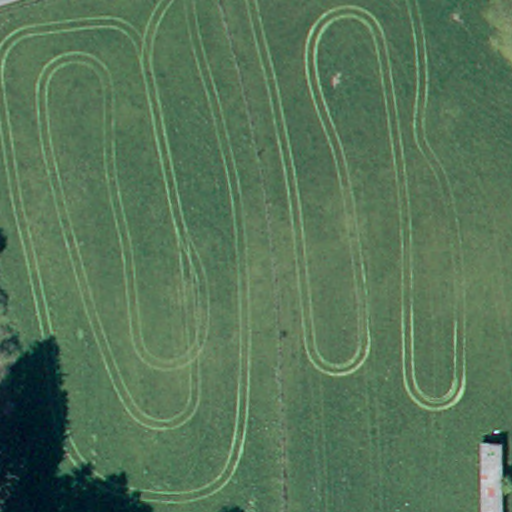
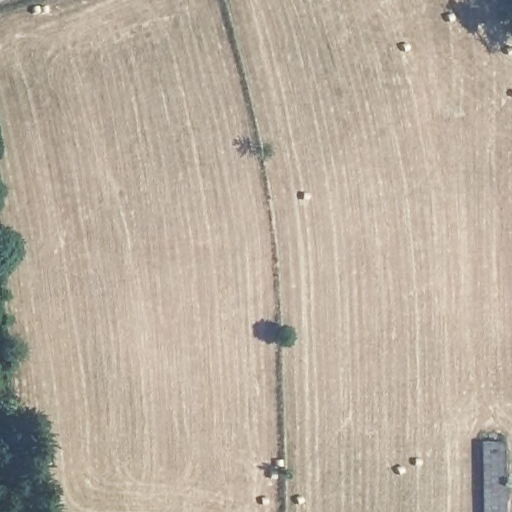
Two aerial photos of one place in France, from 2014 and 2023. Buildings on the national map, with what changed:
unchanged [(499,445),(499,512),(479,512),(479,445),(499,445)]

